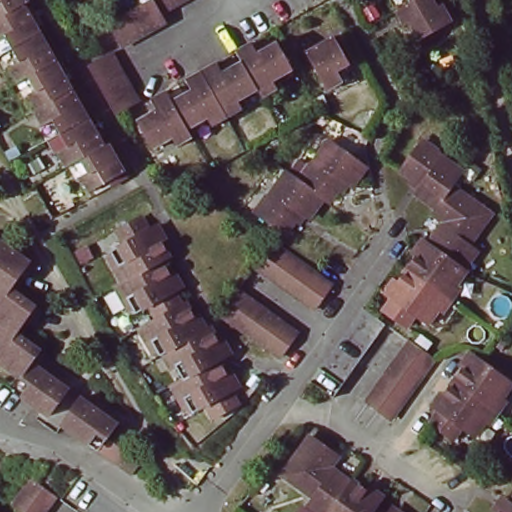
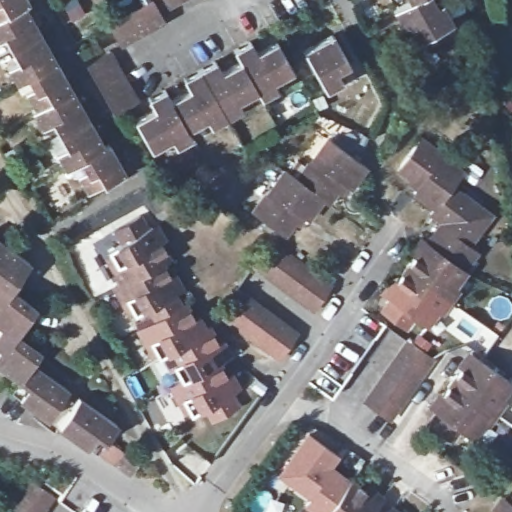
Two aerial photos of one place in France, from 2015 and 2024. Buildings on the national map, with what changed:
unchanged [(28,1),(24,3),(0,16),(0,0),(27,0),(28,1)]
unchanged [(159,13),(164,21),(122,45),(108,21),(146,0),(151,0),(159,13)]
unchanged [(151,0),(181,0),(159,13),(151,0)]
unchanged [(411,0),(433,0),(436,4),(440,2),(452,20),(418,39),(409,23),(403,25),(394,9),(410,0),(411,0)]
unchanged [(0,36),(0,16),(24,3),(40,32),(12,47),(4,34),(0,36)]
unchanged [(55,60),(27,75),(16,81),(8,66),(19,60),(12,47),(40,32),(55,60)]
unchanged [(336,69),(342,80),(326,89),(304,51),(333,34),(349,62),(336,69)]
unchanged [(241,60),(234,50),(250,40),(257,51),(275,40),(292,68),(273,80),(277,88),(261,96),(257,88),(241,60)]
unchanged [(138,99),(114,112),(88,65),(111,51),(138,99)]
unchanged [(35,108),(27,93),(35,88),(27,75),(55,60),(71,87),(35,108)]
unchanged [(200,69),(215,60),(221,71),(241,60),(257,88),(237,100),(242,108),(226,116),(200,69)]
unchanged [(210,125),(206,117),(187,128),(171,99),(190,89),(184,79),(200,69),(226,116),(210,125)]
unchanged [(52,119),(41,125),(32,110),(35,108),(71,87),(88,116),(59,132),(52,119)]
unchanged [(187,128),(191,136),(176,144),(172,137),(151,148),(135,120),(155,108),(149,98),(165,89),(171,99),(187,128)]
unchanged [(64,166),(56,151),(67,145),(59,132),(88,116),(104,144),(79,159),(64,166)]
unchanged [(297,178),(326,137),(365,165),(350,186),(342,180),(328,200),(323,196),(297,178)]
unchanged [(414,192),(420,184),(398,169),(420,140),(462,169),(451,185),(435,207),(414,192)]
unchanged [(104,144),(108,142),(124,171),(88,191),(79,176),(86,172),(79,159),(104,144)]
unchanged [(308,217),(300,212),(285,234),(253,211),(285,169),(297,178),(323,196),(308,217)]
unchanged [(463,268),(427,242),(442,220),(431,213),(435,207),(451,185),(490,212),(467,243),(478,251),(465,269),(463,268)]
unchanged [(127,280),(109,250),(122,243),(114,229),(140,215),(148,229),(152,226),(169,257),(162,261),(127,280)]
unchanged [(0,237),(34,261),(15,288),(0,278),(0,237)]
unchanged [(313,308),(252,264),(270,239),(330,283),(313,308)]
unchanged [(407,269),(427,242),(463,268),(465,269),(445,297),(407,269)]
unchanged [(147,304),(134,311),(119,285),(127,280),(162,261),(176,287),(173,289),(179,302),(154,316),(147,304)]
unchanged [(427,323),(413,314),(404,326),(382,309),(391,296),(389,294),(407,269),(445,297),(427,323)]
unchanged [(0,319),(0,278),(15,288),(39,305),(19,332),(7,323),(0,319)]
unchanged [(279,356),(217,313),(235,288),(296,332),(279,356)]
unchanged [(158,354),(141,323),(154,316),(179,302),(184,300),(201,331),(166,350),(158,354)]
unchanged [(0,360),(0,353),(5,346),(0,342),(0,332),(7,323),(19,332),(44,349),(36,361),(25,377),(0,360)]
unchanged [(201,331),(208,327),(224,356),(216,360),(183,379),(166,350),(201,331)]
unchanged [(389,418),(364,400),(408,340),(432,357),(389,418)]
unchanged [(457,380),(476,353),(512,379),(512,388),(497,409),(457,380)]
unchanged [(232,390),(230,391),(237,404),(213,417),(205,403),(190,411),(174,383),(183,379),(216,360),(232,390)]
unchanged [(72,388),(52,416),(16,390),(25,377),(36,361),(72,388)]
unchanged [(478,436),(465,427),(455,438),(432,421),(440,409),(437,407),(457,380),(497,409),(478,436)]
unchanged [(130,474),(113,462),(96,451),(58,424),(78,396),(116,423),(106,437),(122,449),(139,461),(130,474)]
unchanged [(320,512),(310,505),(316,496),(285,474),(313,434),(343,454),(334,466),(355,481),(332,512),(320,512)]
unchanged [(75,475),(126,512),(78,512),(59,498),(75,475)]
unchanged [(23,512),(11,503),(29,478),(54,496),(43,512),(23,512)]
unchanged [(332,512),(355,481),(356,479),(384,499),(379,506),(375,512),(332,512)]
unchanged [(512,500),(512,512),(500,512),(510,498),(512,500)]
unchanged [(387,512),(375,512),(379,506),(387,512)]
unchanged [(393,512),(391,512),(392,511),(393,512)]

